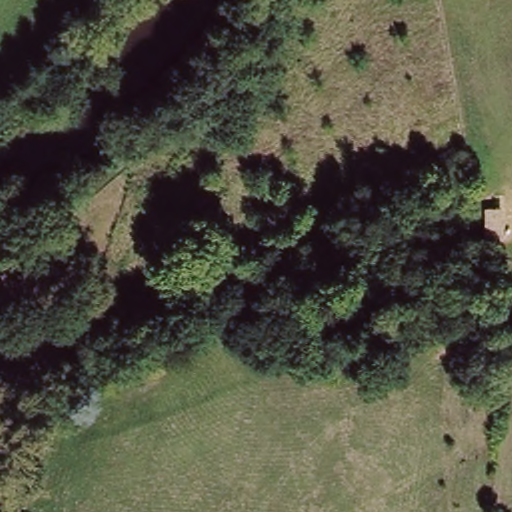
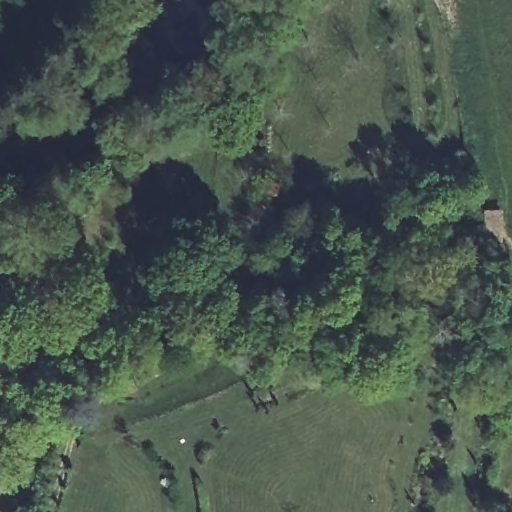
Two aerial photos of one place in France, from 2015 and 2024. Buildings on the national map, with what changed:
[]

